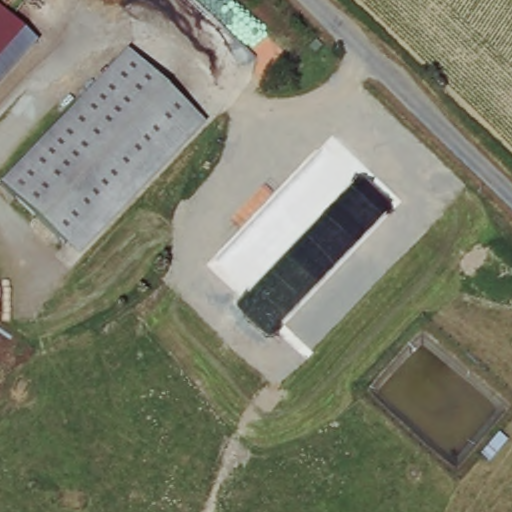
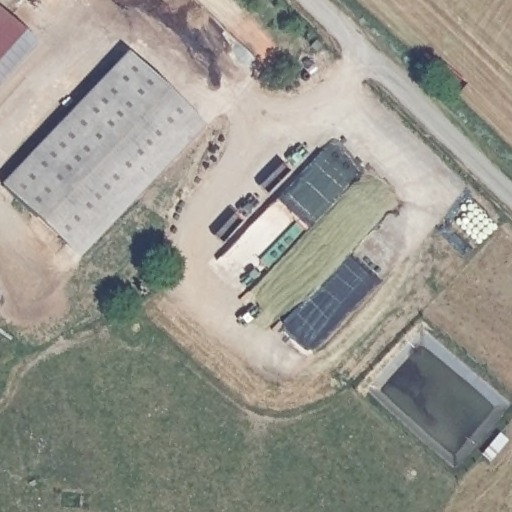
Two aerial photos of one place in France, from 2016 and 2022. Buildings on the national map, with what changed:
unchanged [(0,86),(0,7),(39,44),(0,86)]
unchanged [(136,61),(202,121),(79,253),(12,194),(136,61)]

